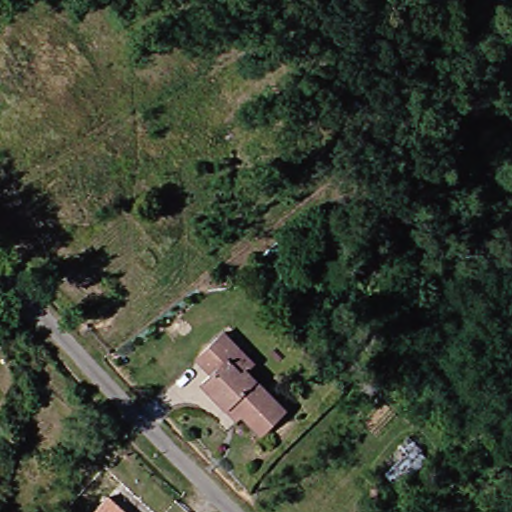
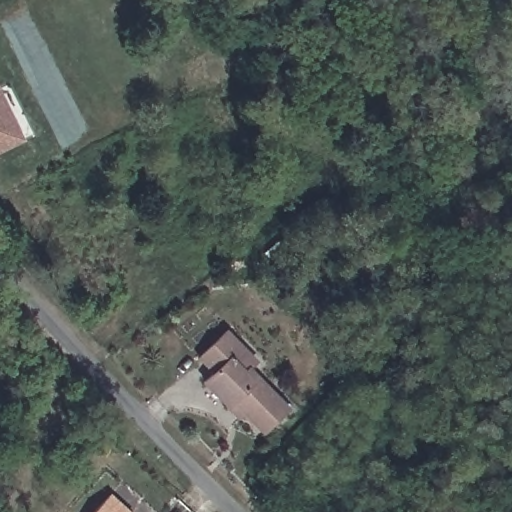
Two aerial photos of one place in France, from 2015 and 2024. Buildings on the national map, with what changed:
new [(0,153),(0,90),(25,142),(0,153)]
unchanged [(229,407),(205,382),(216,372),(202,357),(230,332),(249,352),(258,362),(252,369),(291,411),(270,431),(257,417),(247,426),(229,407)]
unchanged [(112,497),(129,512),(98,512),(112,497)]

